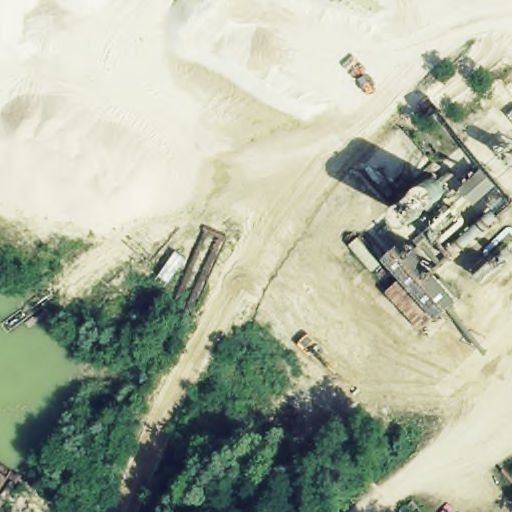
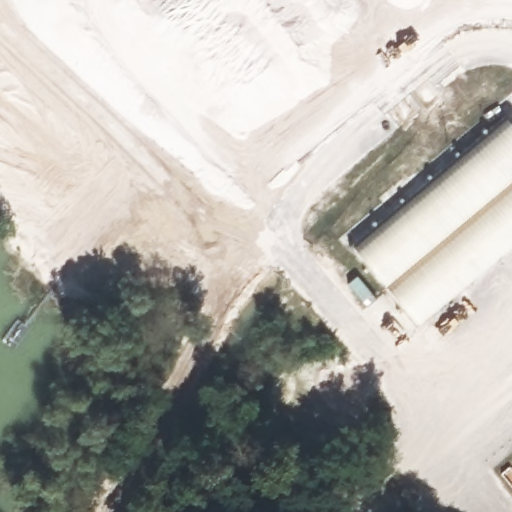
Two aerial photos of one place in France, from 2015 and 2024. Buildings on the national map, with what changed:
new [(512,123),(512,246),(419,324),(352,247),(506,116),(512,123)]
demolished [(383,290),(396,278),(375,259),(404,235),(457,297),(417,330),(383,290)]

